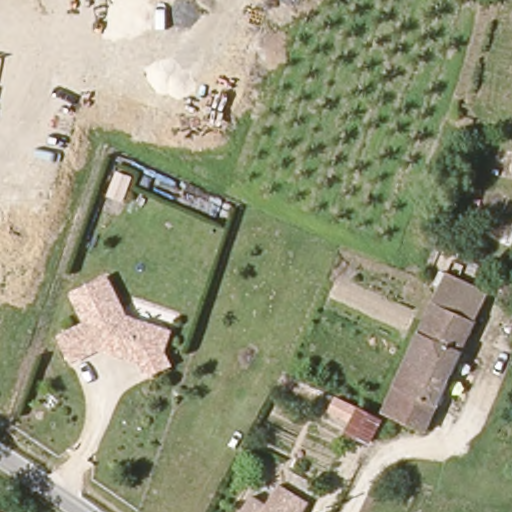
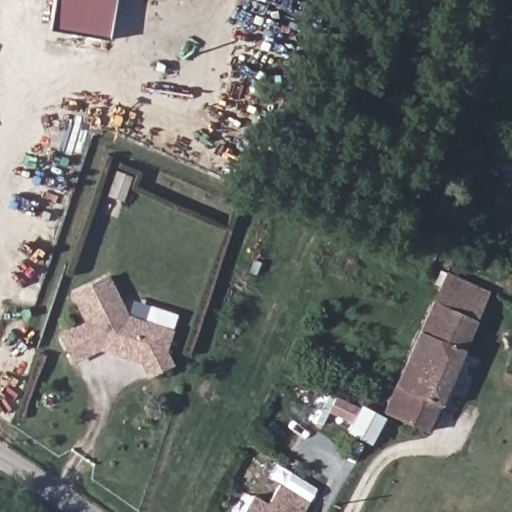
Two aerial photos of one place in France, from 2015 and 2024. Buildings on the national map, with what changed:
new [(53,0),(116,0),(109,41),(48,30),(53,0)]
unchanged [(152,374),(145,360),(124,353),(122,345),(112,342),(77,361),(65,336),(92,322),(77,293),(110,276),(131,315),(174,330),(167,350),(174,363),(152,374)]
unchanged [(448,276),(491,294),(480,321),(437,303),(440,292),(448,276)]
unchanged [(437,303),(480,321),(430,433),(390,415),(437,303)]
unchanged [(377,421),(366,442),(344,432),(356,410),(377,421)]
unchanged [(292,492),(312,503),(307,512),(242,512),(250,499),(280,511),(292,492)]

